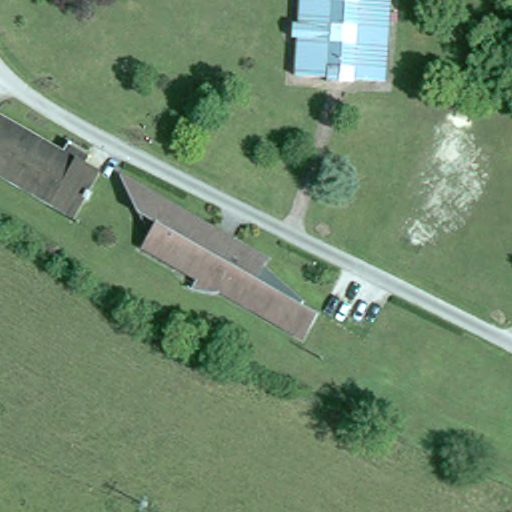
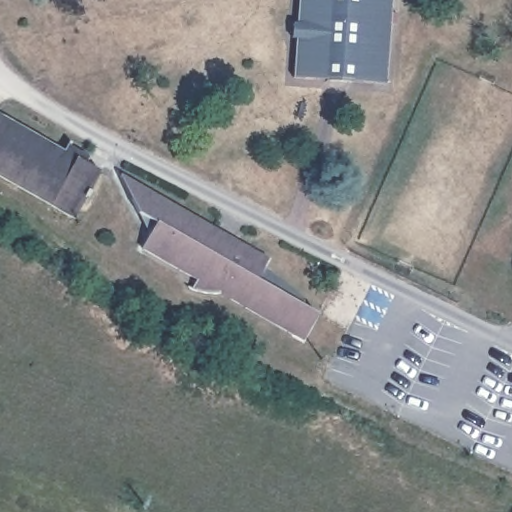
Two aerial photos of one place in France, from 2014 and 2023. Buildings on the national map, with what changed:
unchanged [(355,74),(355,77),(327,75),(328,72),(296,71),(300,0),(392,0),(387,76),(355,74)]
unchanged [(62,150),(67,140),(80,147),(75,157),(97,170),(85,192),(72,217),(0,177),(0,116),(62,150)]
unchanged [(263,262),(301,300),(301,302),(317,311),(302,337),(229,296),(231,292),(226,290),(213,292),(200,291),(191,287),(195,277),(140,246),(154,221),(137,211),(129,197),(118,174),(137,184),(268,254),(263,262)]

